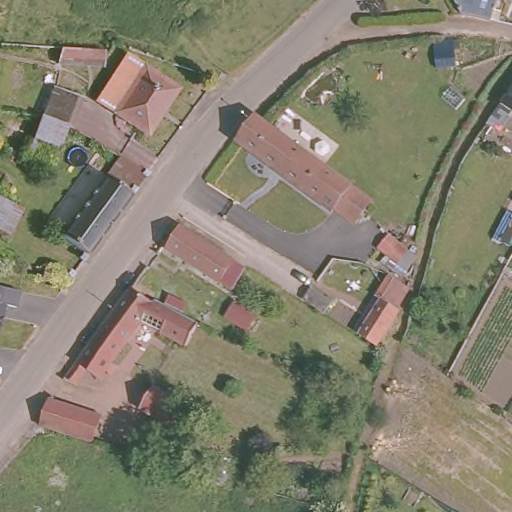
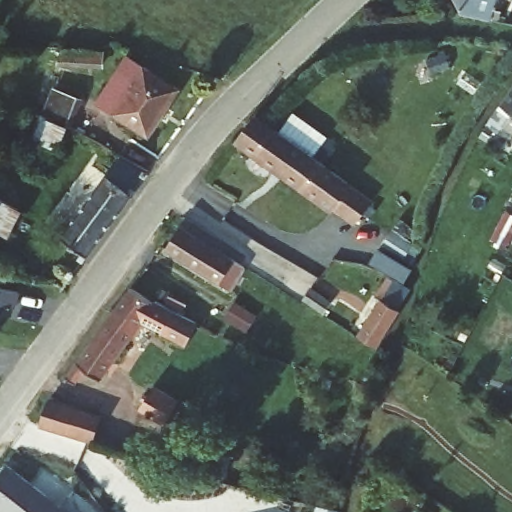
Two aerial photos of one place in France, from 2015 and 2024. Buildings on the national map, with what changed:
unchanged [(502,6),(499,18),(469,7),(462,0),(484,0),(502,6)]
unchanged [(110,64),(63,61),(51,60),(51,46),(63,47),(111,51),(110,64)]
unchanged [(175,88),(147,132),(112,110),(140,66),(175,88)]
unchanged [(19,153),(30,135),(35,137),(48,116),(48,115),(63,90),(86,103),(70,130),(67,127),(55,148),(53,147),(43,166),(19,153)]
unchanged [(504,125),(511,115),(501,107),(512,91),(512,131),(504,125)]
unchanged [(335,211),(239,141),(258,115),(283,134),(305,149),(324,162),(354,185),(374,200),(354,225),(335,211)]
unchanged [(107,177),(121,159),(147,173),(131,195),(87,255),(63,237),(107,177)]
unchanged [(11,235),(0,228),(0,199),(1,197),(25,210),(11,235)]
unchanged [(226,284),(161,244),(174,221),(241,261),(226,284)]
unchanged [(412,249),(400,262),(381,247),(392,233),(412,249)]
unchanged [(54,270),(69,280),(61,289),(48,278),(54,270)]
unchanged [(359,335),(380,300),(374,296),(388,274),(407,286),(392,308),(397,312),(378,346),(359,335)]
unchanged [(298,278),(318,292),(311,301),(291,289),(298,278)]
unchanged [(156,301),(143,320),(100,377),(85,368),(75,381),(67,375),(96,336),(106,322),(133,285),(156,301)]
unchanged [(16,309),(3,305),(0,329),(0,288),(19,292),(16,309)]
unchanged [(173,293),(190,300),(188,305),(171,298),(173,293)]
unchanged [(161,296),(202,315),(191,338),(165,327),(166,326),(143,320),(156,301),(161,296)]
unchanged [(181,400),(167,422),(143,405),(158,385),(181,400)]
unchanged [(103,415),(95,443),(41,426),(50,397),(103,415)]
new [(61,505),(63,503),(74,512),(0,512),(0,474),(8,464),(61,505)]

